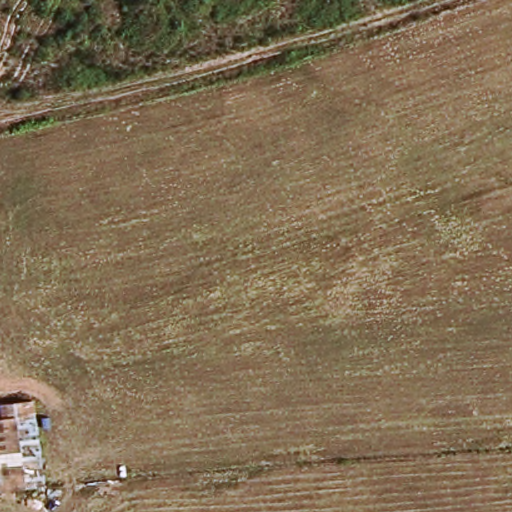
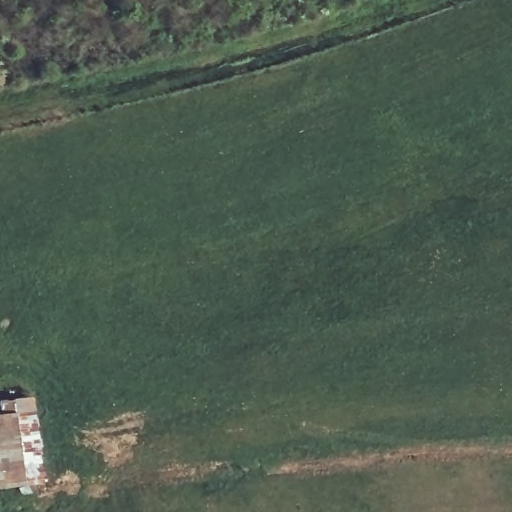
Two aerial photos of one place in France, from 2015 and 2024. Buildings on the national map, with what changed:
unchanged [(38,487),(0,492),(0,418),(28,414),(38,487)]

